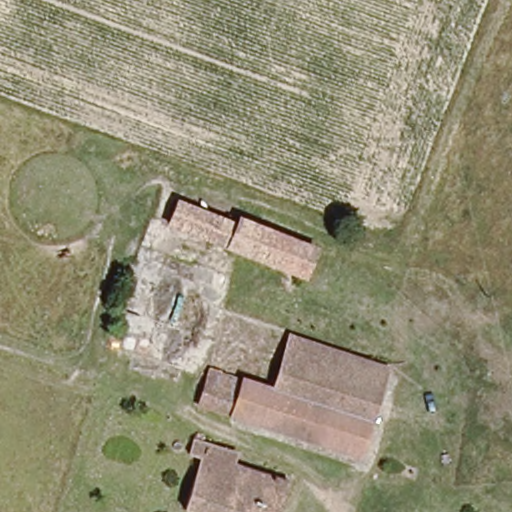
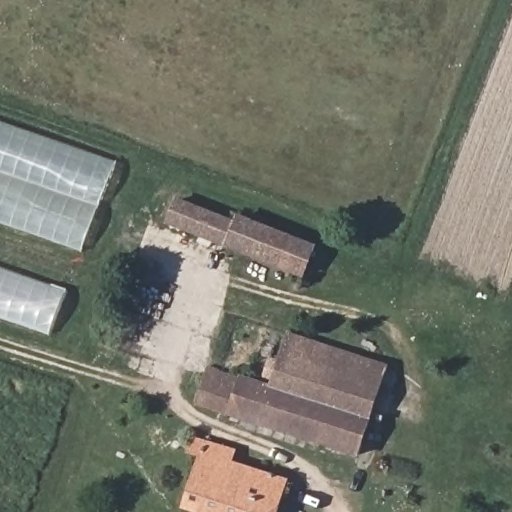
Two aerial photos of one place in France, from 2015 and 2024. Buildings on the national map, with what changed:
new [(81,251),(0,222),(0,125),(116,164),(81,251)]
unchanged [(164,225),(176,198),(235,223),(238,215),(318,246),(304,280),(164,225)]
new [(0,269),(64,291),(49,334),(0,317),(0,269)]
unchanged [(386,370),(346,461),(199,396),(217,355),(272,380),(294,329),(386,370)]
unchanged [(238,461),(279,480),(265,512),(199,512),(190,508),(188,507),(213,450),(199,444),(204,432),(243,450),(238,461)]

